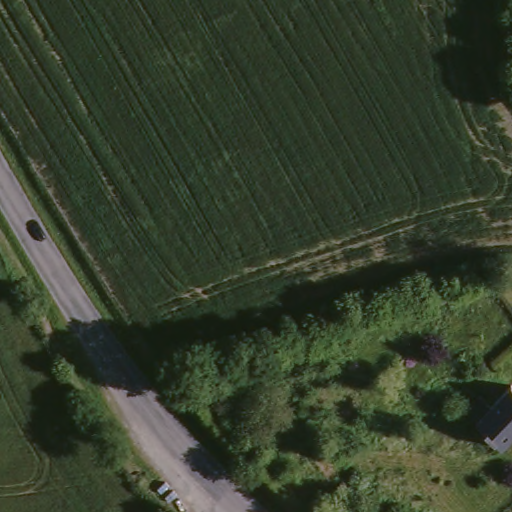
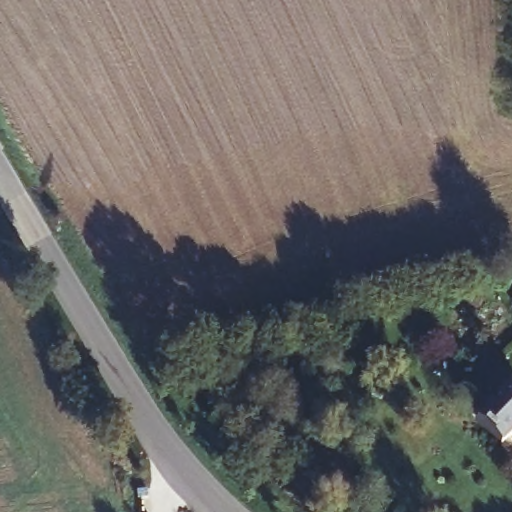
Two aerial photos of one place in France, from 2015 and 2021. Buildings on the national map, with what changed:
unchanged [(478,399),(491,411),(509,389),(512,392),(512,442),(504,451),(464,415),(478,399)]

